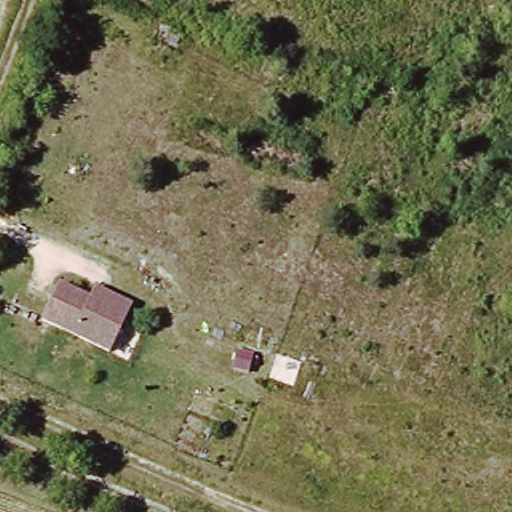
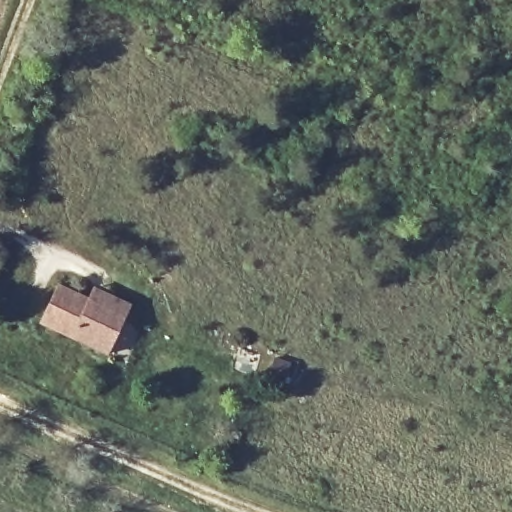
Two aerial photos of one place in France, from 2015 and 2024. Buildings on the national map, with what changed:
unchanged [(43,317),(60,282),(90,296),(94,287),(112,292),(134,302),(129,314),(111,350),(43,317)]

